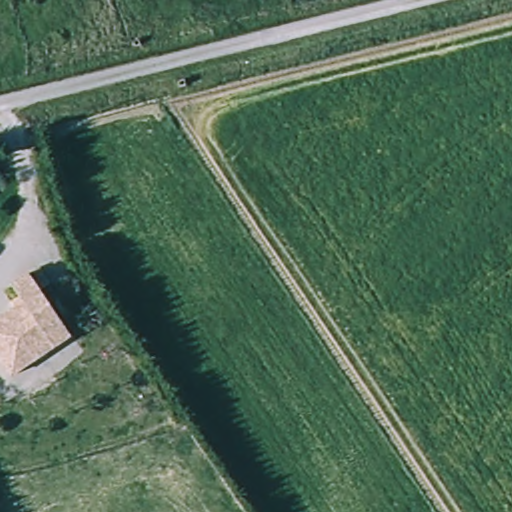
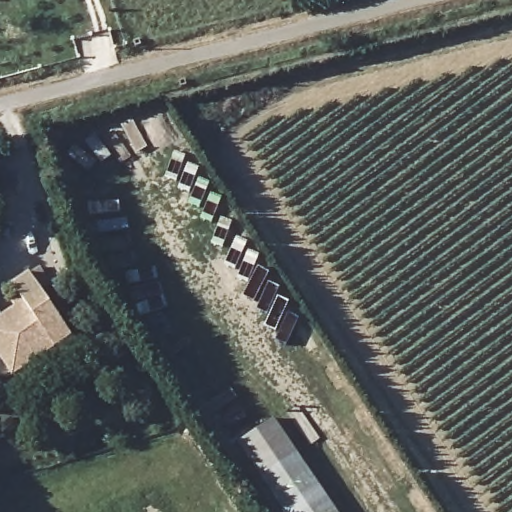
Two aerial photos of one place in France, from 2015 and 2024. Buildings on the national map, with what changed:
unchanged [(0,325),(30,306),(18,289),(36,277),(78,339),(61,351),(20,379),(12,367),(0,350),(0,325)]
new [(338,512),(284,512),(238,444),(276,419),(338,512)]

